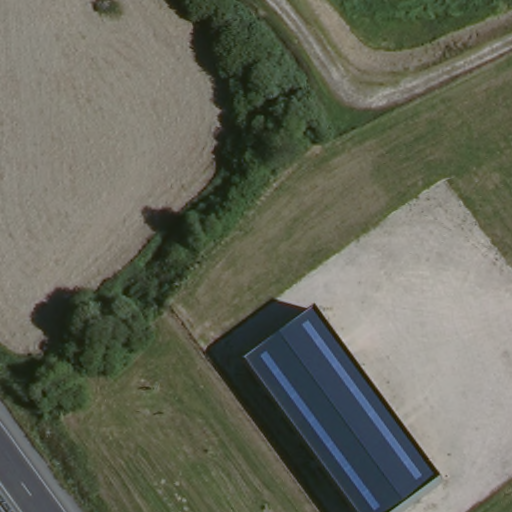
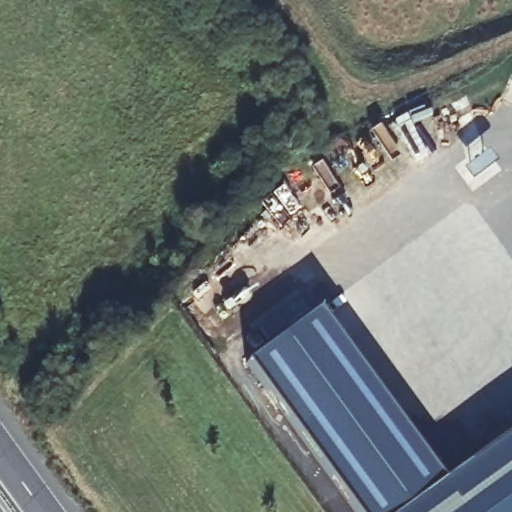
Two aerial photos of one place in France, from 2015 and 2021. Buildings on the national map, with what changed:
unchanged [(404,512),(355,512),(247,364),(318,312),(444,481),(404,512)]
new [(512,432),(512,512),(404,512),(444,481),(512,432)]

